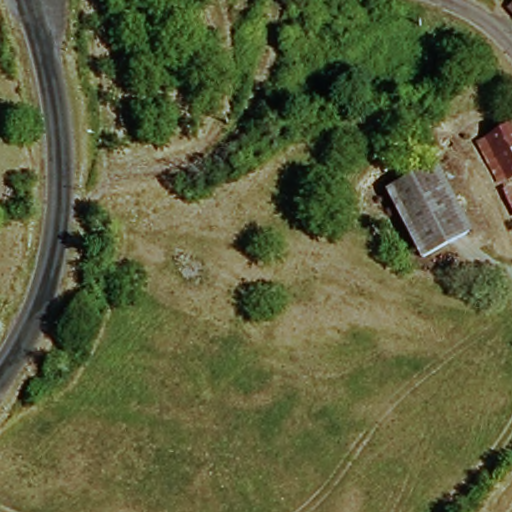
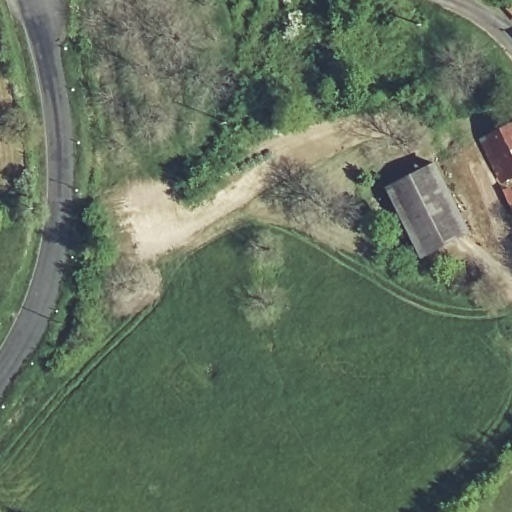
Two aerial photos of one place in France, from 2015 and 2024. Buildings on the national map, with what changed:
unchanged [(478,142),(512,124),(512,180),(501,186),(478,142)]
unchanged [(387,192),(432,167),(468,230),(423,256),(387,192)]

